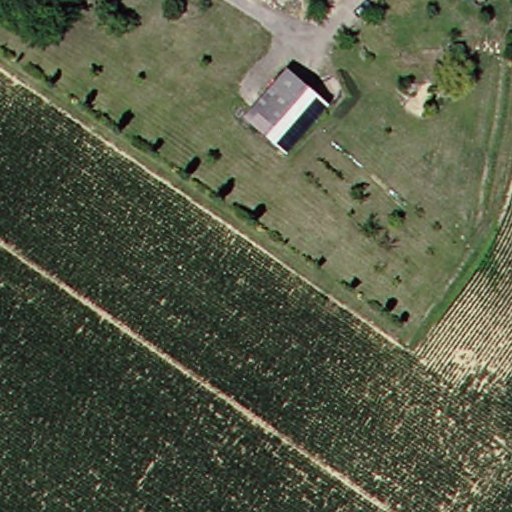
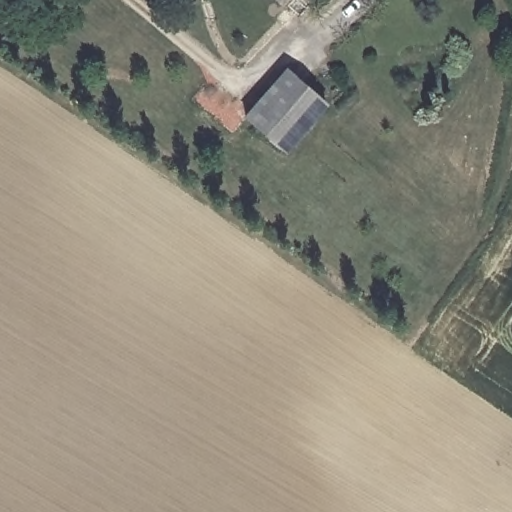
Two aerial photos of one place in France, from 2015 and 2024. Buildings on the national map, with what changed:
unchanged [(252,115),(290,68),(332,104),(294,150),(252,115)]

